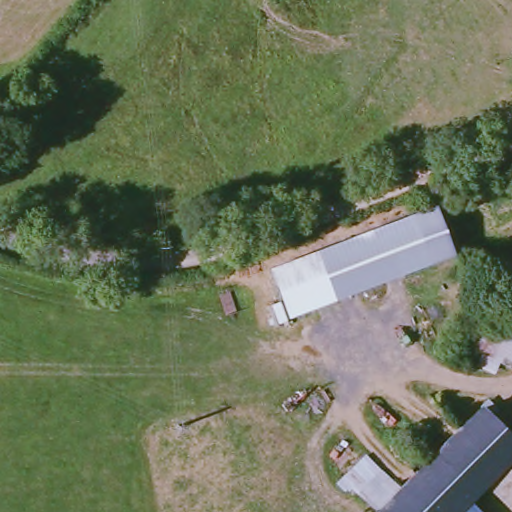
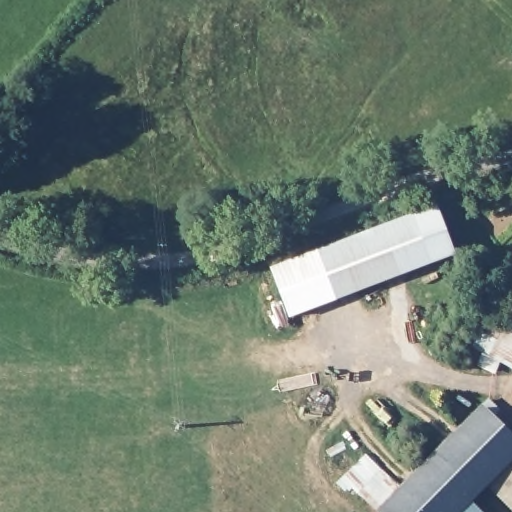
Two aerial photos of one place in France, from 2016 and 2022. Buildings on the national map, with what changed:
unchanged [(451,259),(286,317),(269,269),(419,215),(434,210),(447,247),(451,259)]
unchanged [(499,362),(493,372),(483,366),(487,357),(472,351),(479,333),(491,337),(496,323),(512,333),(512,367),(499,362)]
unchanged [(509,512),(483,486),(468,504),(475,512),(381,512),(380,511),(402,490),(404,487),(481,411),(512,443),(512,512),(509,512)]
unchanged [(368,455),(402,490),(380,511),(356,488),(346,495),(338,486),(368,455)]

